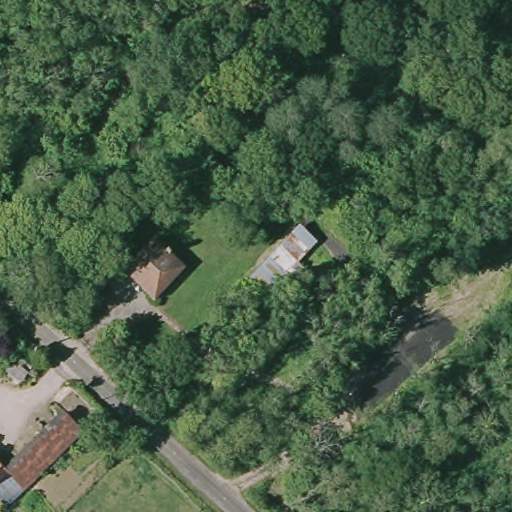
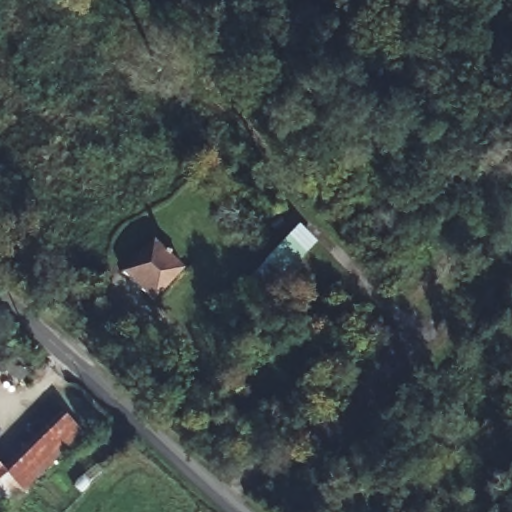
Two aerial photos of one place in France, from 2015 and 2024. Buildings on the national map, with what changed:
unchanged [(293,231),(309,245),(292,263),(299,270),(285,284),(263,263),(293,231)]
unchanged [(121,269),(150,239),(182,267),(152,299),(121,269)]
unchanged [(6,473),(64,411),(81,427),(3,512),(0,512),(0,467),(6,473)]

